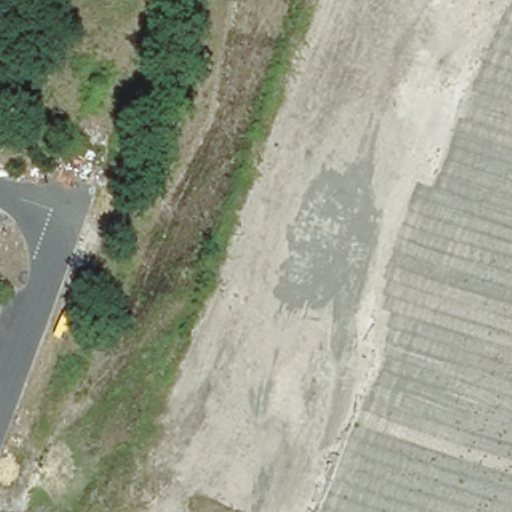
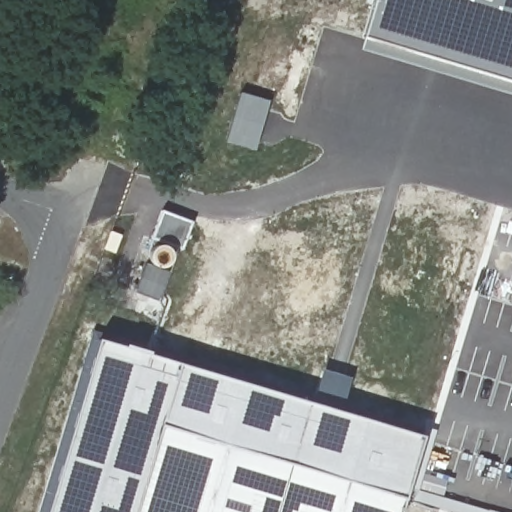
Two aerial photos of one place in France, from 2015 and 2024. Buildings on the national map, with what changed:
new [(373,0),(512,0),(512,84),(362,39),(373,0)]
new [(255,150),(225,142),(239,92),(269,101),(255,150)]
new [(150,239),(162,210),(190,223),(157,301),(135,292),(156,241),(150,239)]
new [(122,347),(124,345),(149,352),(148,355),(308,402),(321,369),(351,377),(338,411),(422,436),(406,486),(403,498),(161,425),(135,512),(45,512),(96,340),(122,347)]
new [(135,512),(161,425),(405,498),(401,512),(135,512)]
new [(403,498),(406,486),(440,496),(487,511),(487,509),(498,512),(450,512),(405,498),(403,498)]

